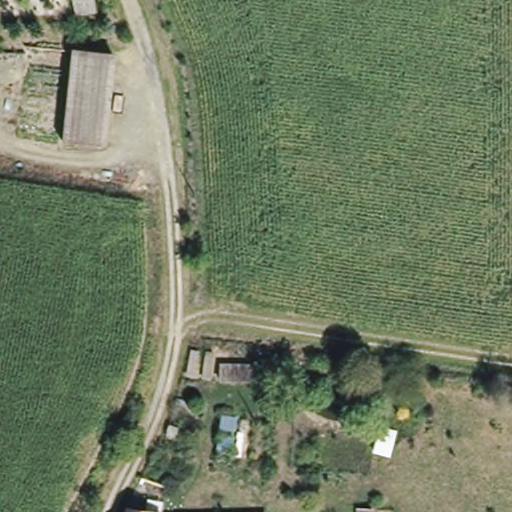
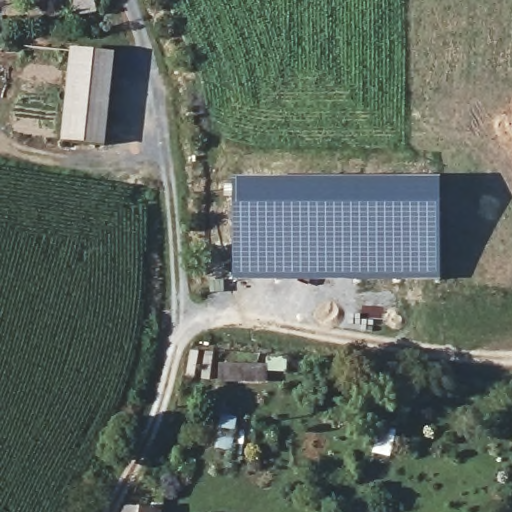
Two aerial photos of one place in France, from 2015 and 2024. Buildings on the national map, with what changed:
unchanged [(76,14),(74,0),(94,0),(96,11),(76,14)]
unchanged [(72,49),(115,52),(105,145),(62,139),(72,49)]
new [(235,282),(235,210),(234,182),(441,179),(441,207),(441,282),(235,282)]
unchanged [(211,355),(219,356),(215,381),(206,379),(211,355)]
unchanged [(226,357),(234,357),(234,366),(289,368),(290,361),(308,362),(308,377),(290,375),(289,387),(232,386),(222,381),(226,357)]
unchanged [(170,423),(179,427),(174,438),(166,434),(170,423)]
unchanged [(137,483),(161,490),(160,503),(158,512),(121,512),(128,500),(137,483)]
unchanged [(373,507),(373,512),(357,512),(357,506),(373,507)]

